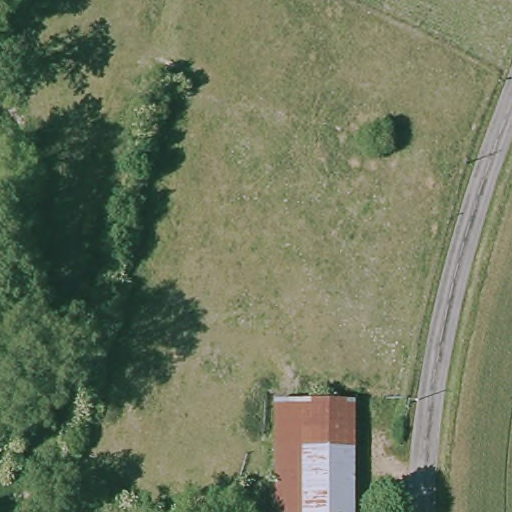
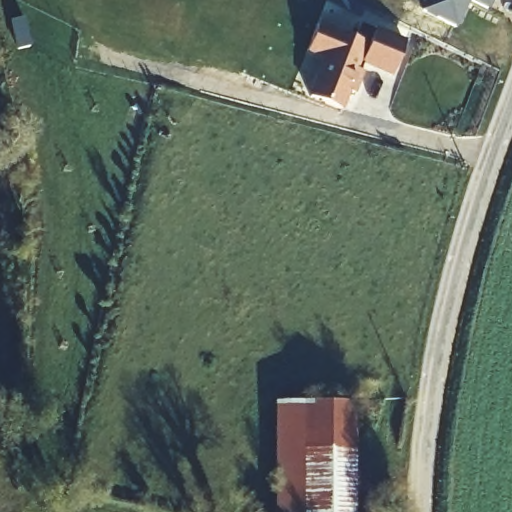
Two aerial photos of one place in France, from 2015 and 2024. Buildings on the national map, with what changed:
new [(487,10),(469,2),(455,29),(419,11),(424,0),(492,0),(487,10)]
new [(391,78),(362,67),(344,110),(311,98),(327,64),(303,55),(315,25),(347,37),(349,32),(354,35),(359,23),(406,43),(391,78)]
unchanged [(351,400),(347,512),(271,512),(274,397),(351,400)]

